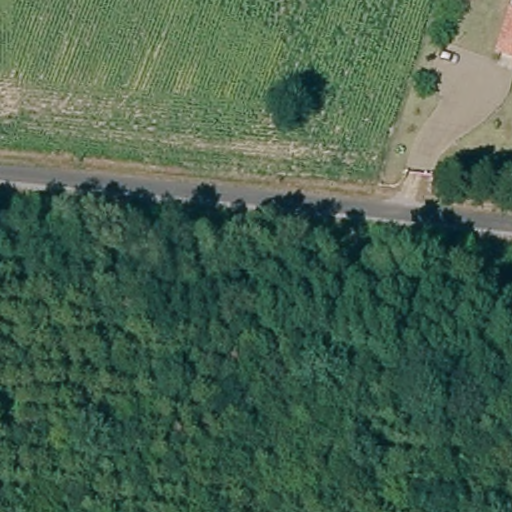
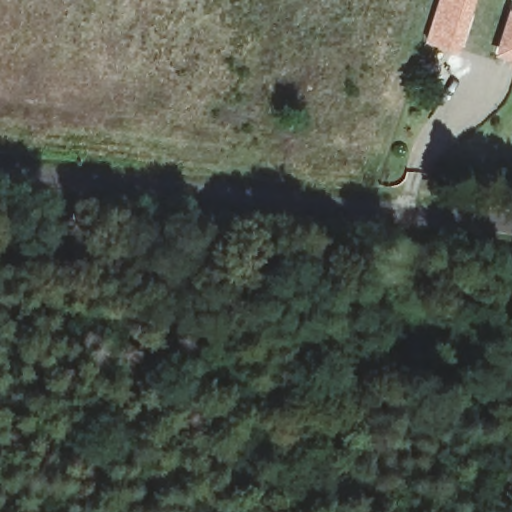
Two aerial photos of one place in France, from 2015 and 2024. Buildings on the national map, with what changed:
new [(477,0),(462,54),(425,44),(438,0),(477,0)]
unchanged [(512,20),(512,71),(508,69),(511,61),(490,54),(502,16),(512,20)]

